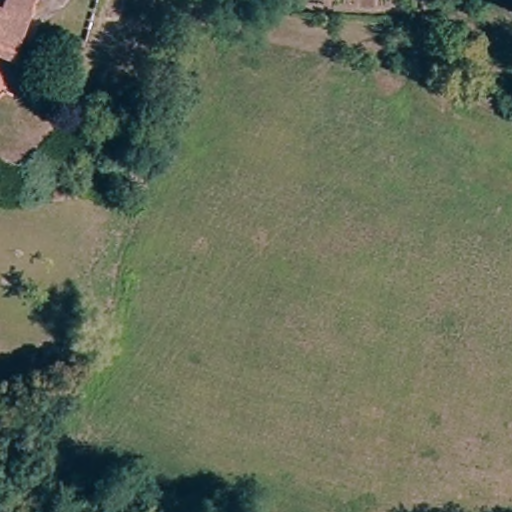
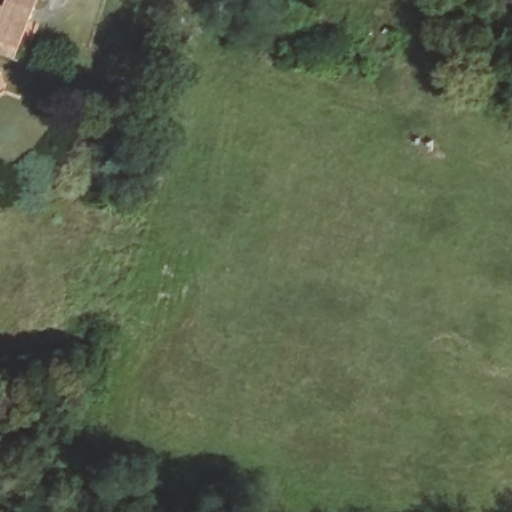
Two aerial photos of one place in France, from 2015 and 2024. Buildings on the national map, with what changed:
unchanged [(7,10),(11,0),(43,0),(36,19),(31,17),(19,52),(3,46),(0,55),(0,7),(7,10)]

